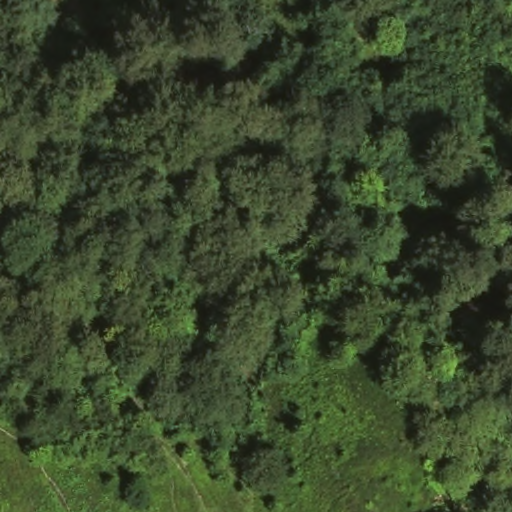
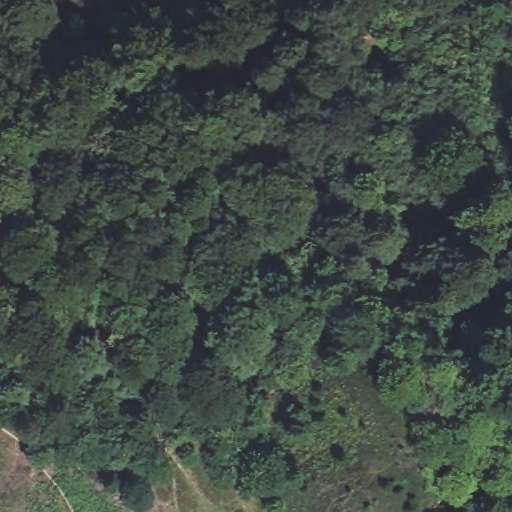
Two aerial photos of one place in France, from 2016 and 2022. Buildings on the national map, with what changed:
unchanged [(420,377),(411,397),(397,393),(405,370),(420,377)]

